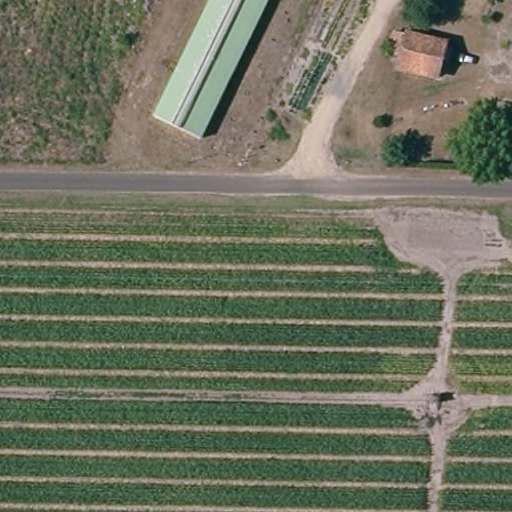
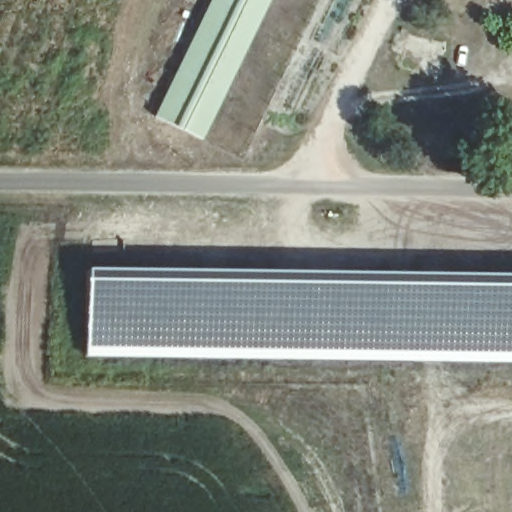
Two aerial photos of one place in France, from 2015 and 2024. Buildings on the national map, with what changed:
unchanged [(266,0),(196,130),(155,108),(213,0),(266,0)]
demolished [(512,39),(507,60),(483,54),(497,9),(512,14),(512,39)]
demolished [(439,80),(393,68),(403,28),(449,40),(439,80)]
new [(512,272),(512,362),(84,356),(85,265),(512,272)]

